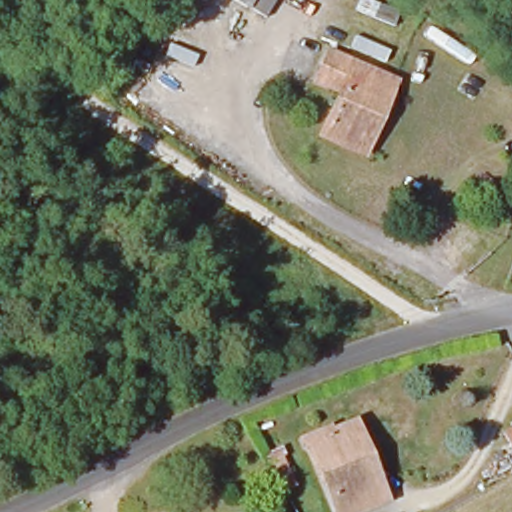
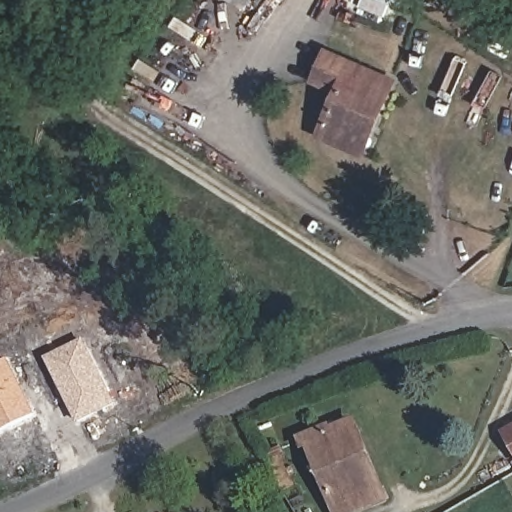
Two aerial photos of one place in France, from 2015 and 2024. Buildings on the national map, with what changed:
unchanged [(243,11),(224,0),(250,0),(243,11)]
unchanged [(358,151),(322,135),(339,95),(318,81),(330,59),(351,68),(395,84),(377,127),(366,155),(358,151)]
new [(45,358),(85,338),(117,404),(79,425),(45,358)]
new [(0,363),(9,358),(36,415),(0,432),(0,363)]
unchanged [(341,512),(312,456),(306,459),(300,447),(329,431),(331,436),(355,425),(387,490),(394,501),(375,512),(341,512)]
unchanged [(502,435),(512,430),(512,452),(502,435)]

